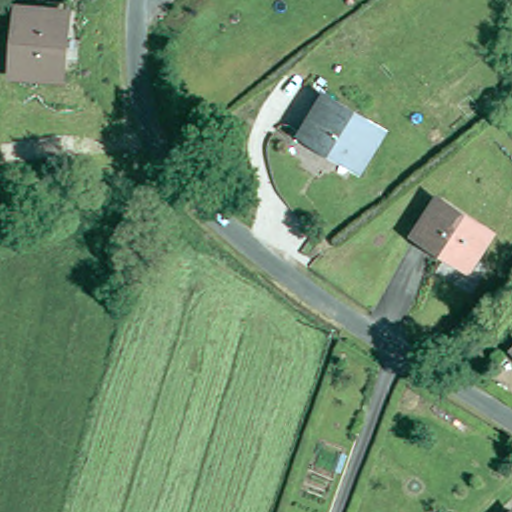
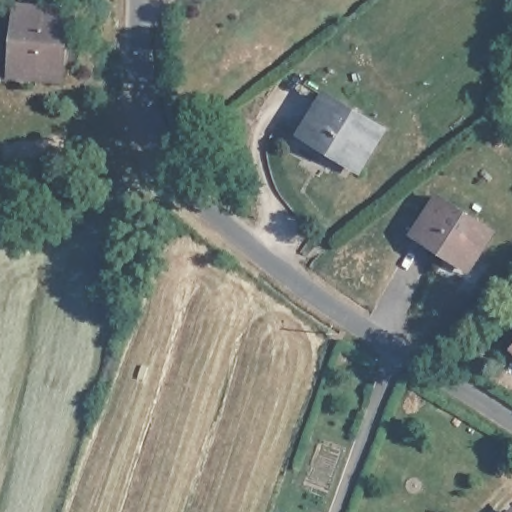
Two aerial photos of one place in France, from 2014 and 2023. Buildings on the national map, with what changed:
unchanged [(41,82),(14,80),(20,14),(47,16),(48,6),(70,8),(69,18),(63,75),(62,84),(41,82)]
unchanged [(358,169),(303,135),(327,97),(382,131),(358,169)]
unchanged [(468,269),(416,235),(439,200),(491,234),(468,269)]

